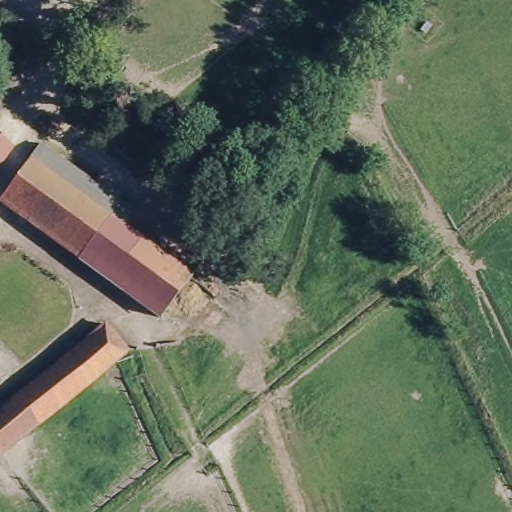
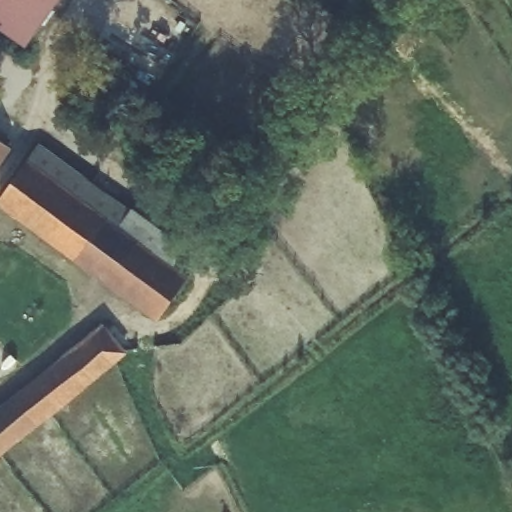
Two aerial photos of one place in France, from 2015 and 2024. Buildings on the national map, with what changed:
new [(27,46),(0,26),(0,0),(59,0),(27,46)]
unchanged [(0,171),(0,141),(15,152),(0,171)]
unchanged [(152,317),(0,199),(0,190),(37,145),(194,265),(152,317)]
unchanged [(126,352),(101,373),(100,374),(18,441),(15,442),(0,455),(0,409),(104,325),(126,352)]

